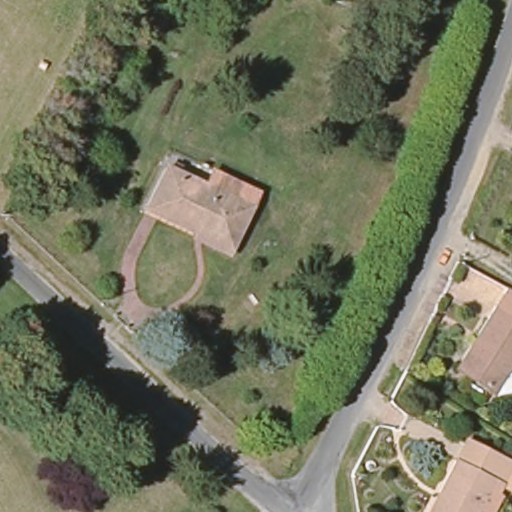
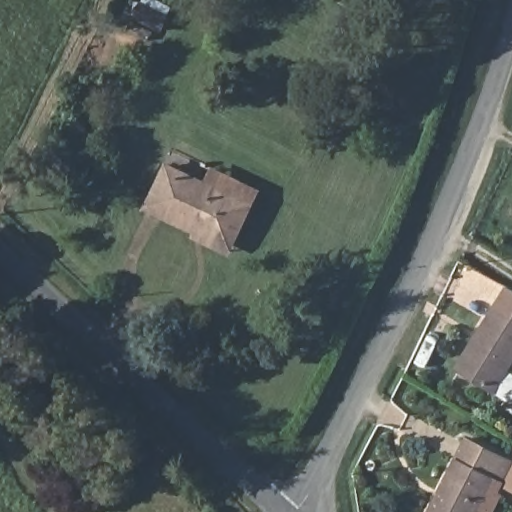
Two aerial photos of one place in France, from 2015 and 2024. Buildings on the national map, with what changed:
unchanged [(167,14),(159,27),(132,14),(141,0),(167,14)]
unchanged [(194,236),(196,232),(147,209),(167,166),(205,184),(212,170),(257,191),(250,206),(232,242),(227,253),(194,236)]
unchanged [(511,400),(497,391),(468,373),(462,369),(483,335),(512,288),(512,367),(510,370),(512,371),(512,400),(511,400)]
unchanged [(445,497),(472,443),(512,465),(512,489),(500,482),(484,512),(437,512),(445,497)]

